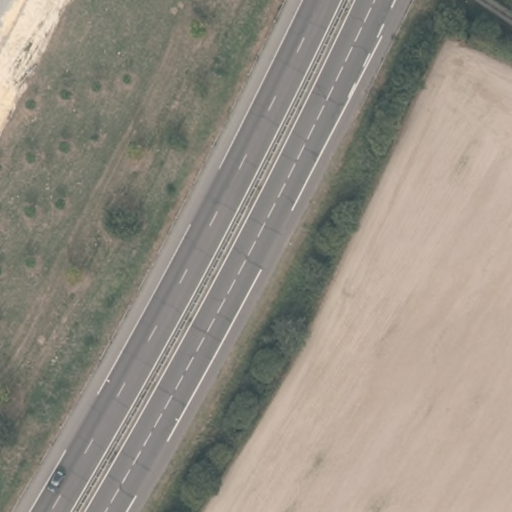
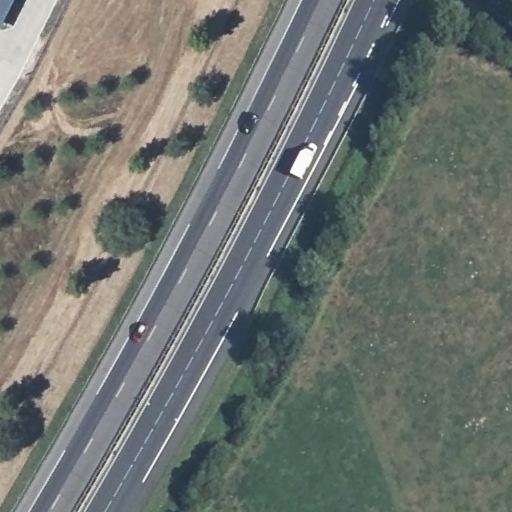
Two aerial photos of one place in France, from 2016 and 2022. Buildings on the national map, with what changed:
unchanged [(0,0),(9,0),(0,19),(0,0)]

